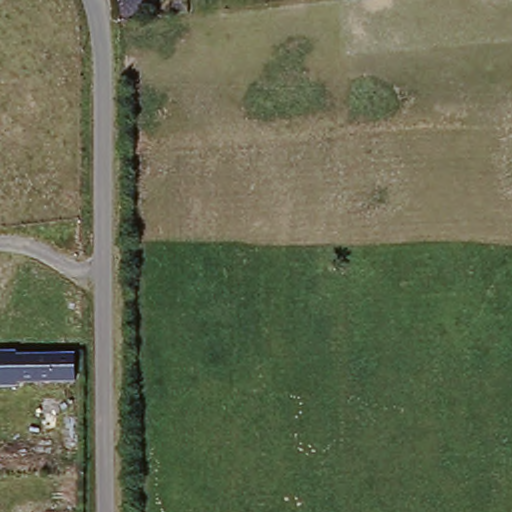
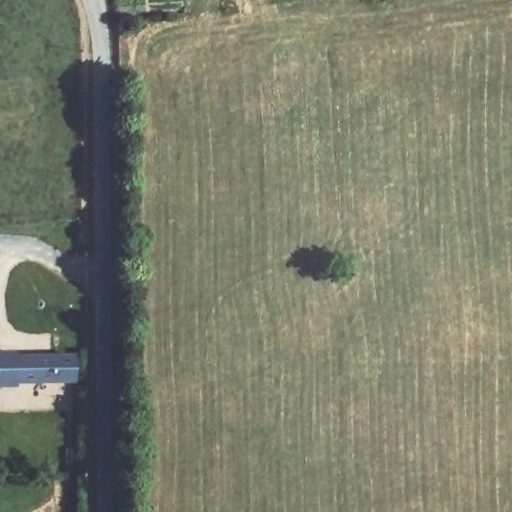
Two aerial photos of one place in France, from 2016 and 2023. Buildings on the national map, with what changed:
unchanged [(75,350),(76,376),(18,377),(16,352),(75,350)]

